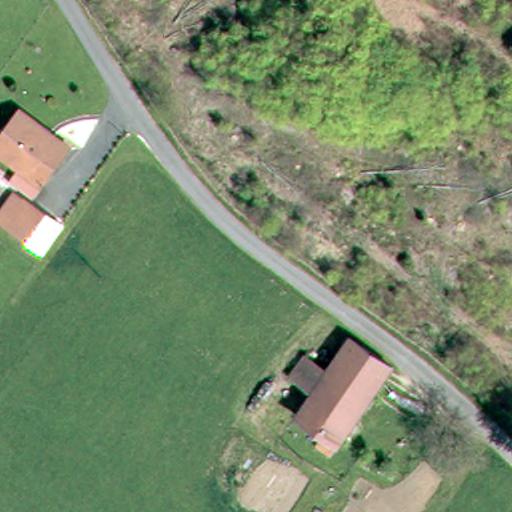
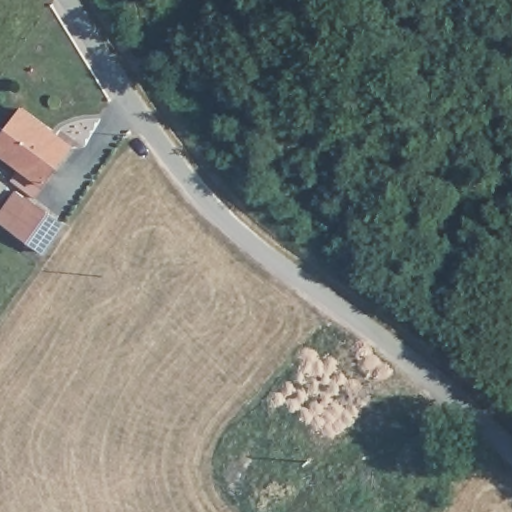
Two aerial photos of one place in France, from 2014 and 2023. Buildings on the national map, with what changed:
unchanged [(68,140),(32,196),(7,179),(15,166),(0,155),(0,130),(17,106),(68,140)]
unchanged [(47,245),(14,225),(30,200),(62,221),(47,245)]
demolished [(323,432),(300,416),(315,393),(292,377),(308,355),(330,369),(351,336),(390,364),(341,442),(323,432)]
unchanged [(332,456),(316,446),(323,432),(341,442),(332,456)]

